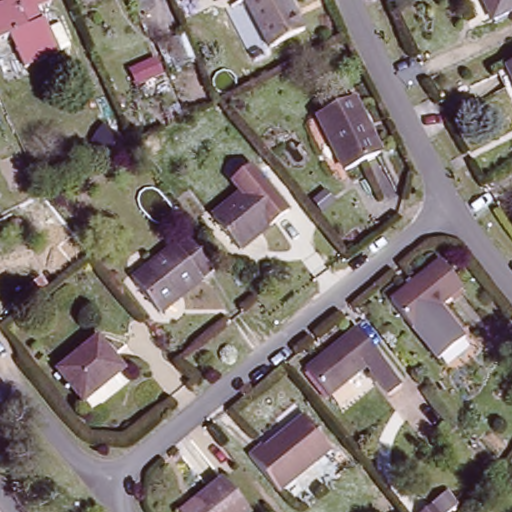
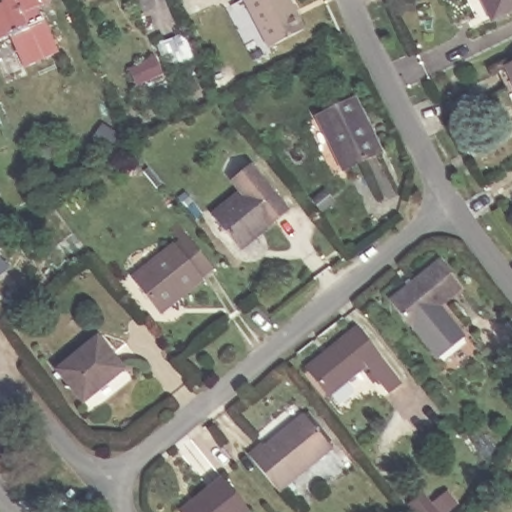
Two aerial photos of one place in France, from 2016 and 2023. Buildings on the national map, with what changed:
unchanged [(47,1),(35,7),(40,17),(43,16),(59,52),(24,67),(10,35),(0,39),(0,4),(3,2),(3,0),(46,0),(47,1)]
unchanged [(302,27),(269,44),(249,0),(291,0),(302,27)]
unchanged [(495,18),(487,0),(512,0),(512,9),(495,18)]
unchanged [(512,65),(512,69),(510,66),(512,65)]
unchanged [(381,148),(350,166),(323,117),(354,100),(381,148)]
unchanged [(287,209),(237,251),(208,216),(238,192),(230,182),(252,166),(287,209)]
unchanged [(185,241),(175,230),(180,225),(217,267),(165,312),(138,282),(185,241)]
unchanged [(463,288),(440,307),(467,337),(440,361),(387,297),(437,260),(463,288)]
unchanged [(355,326),(399,378),(386,390),(364,363),(332,391),(310,363),(355,326)]
unchanged [(103,335),(130,368),(92,397),(66,365),(103,335)]
unchanged [(308,418),(332,449),(281,489),(253,453),(265,445),(268,450),(308,418)]
unchanged [(248,508),(244,512),(184,512),(181,508),(222,475),(248,508)]
unchanged [(424,512),(432,506),(437,512),(424,512)]

